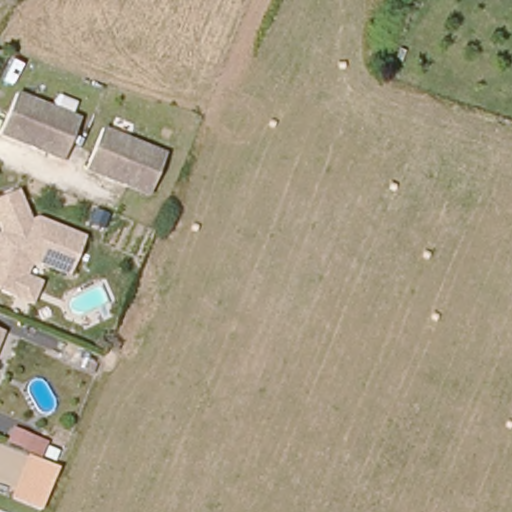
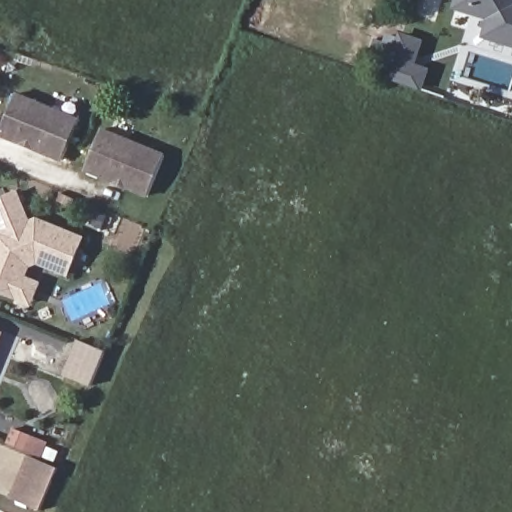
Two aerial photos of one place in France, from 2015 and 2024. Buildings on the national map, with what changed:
new [(512,0),(512,43),(485,34),(495,2),(490,16),(471,10),(455,5),(457,0),(512,0)]
new [(417,63),(431,68),(424,90),(385,77),(391,60),(379,56),(387,33),(399,37),(401,30),(426,39),(417,63)]
unchanged [(14,97),(79,121),(64,161),(0,138),(0,137),(14,97)]
unchanged [(165,155),(150,195),(86,171),(101,131),(165,155)]
unchanged [(31,301),(15,296),(0,290),(0,232),(1,231),(0,229),(0,197),(16,191),(27,221),(33,225),(36,218),(81,236),(67,272),(35,260),(28,263),(23,275),(38,282),(31,301)]
new [(77,336),(109,349),(95,383),(64,370),(77,336)]
unchanged [(33,455),(61,466),(43,510),(15,499),(33,455)]

